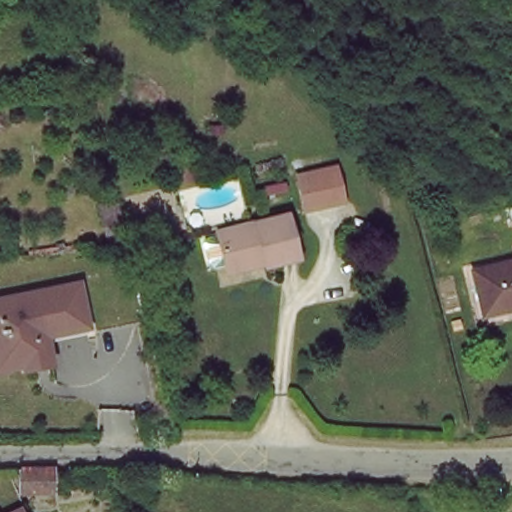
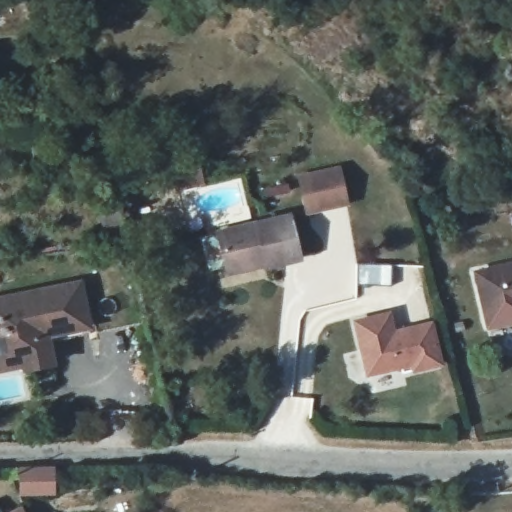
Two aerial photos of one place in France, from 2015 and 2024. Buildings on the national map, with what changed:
unchanged [(341,168),(349,202),(310,211),(302,177),(341,168)]
unchanged [(200,174),(204,190),(179,196),(175,180),(200,174)]
unchanged [(123,199),(130,244),(108,247),(102,205),(123,199)]
unchanged [(229,266),(221,232),(293,215),(303,260),(270,267),(231,275),(229,266)]
unchanged [(481,311),(473,275),(512,265),(512,314),(483,320),(481,311)]
unchanged [(53,338),(58,369),(0,380),(0,296),(80,283),(86,329),(53,338)]
new [(412,367),(365,377),(353,319),(392,310),(396,328),(433,319),(444,365),(413,373),(412,367)]
unchanged [(26,465),(60,465),(60,493),(25,491),(26,465)]
unchanged [(30,512),(15,512),(28,507),(30,512)]

